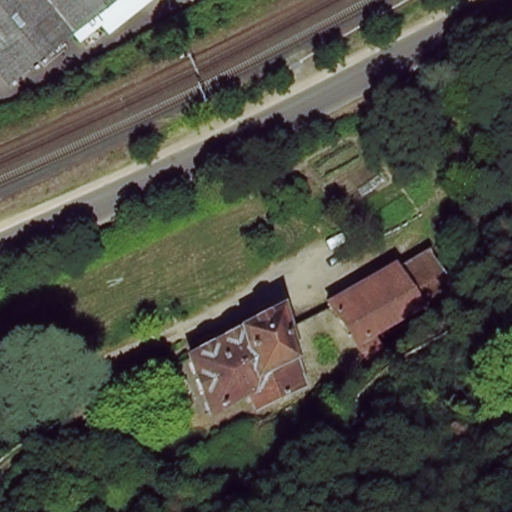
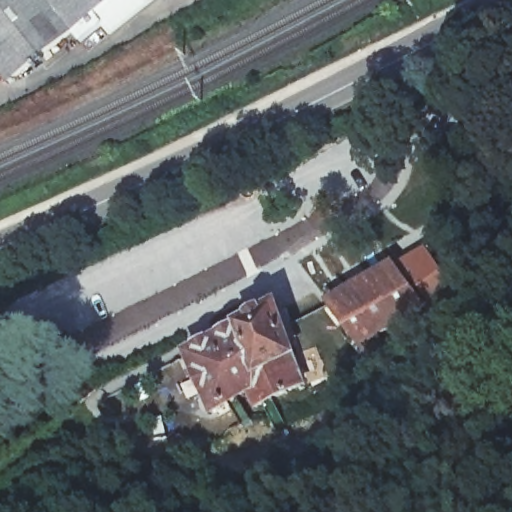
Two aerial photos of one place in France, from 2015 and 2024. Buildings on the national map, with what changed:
unchanged [(12,74),(0,59),(0,0),(107,0),(104,3),(12,74)]
unchanged [(168,0),(129,31),(104,3),(107,0),(168,0)]
unchanged [(367,376),(320,311),(384,272),(388,277),(419,256),(445,293),(365,341),(381,364),(386,365),(367,376)]
unchanged [(291,388),(250,411),(243,399),(206,417),(183,363),(213,345),(271,310),(291,388)]

